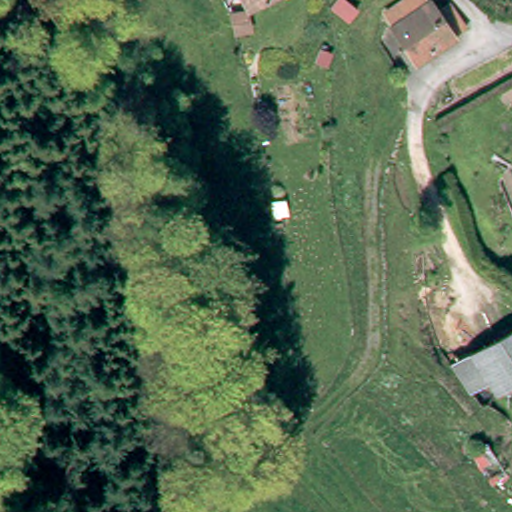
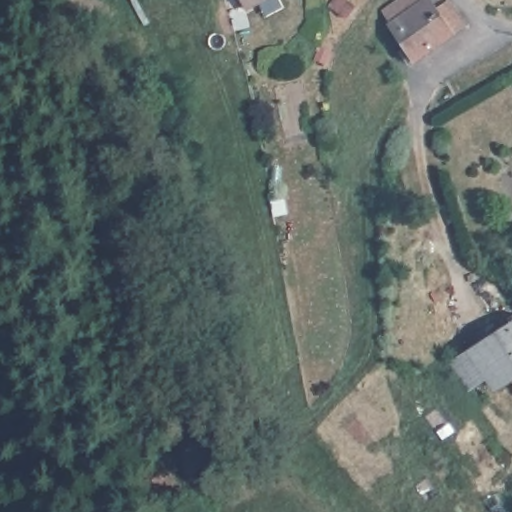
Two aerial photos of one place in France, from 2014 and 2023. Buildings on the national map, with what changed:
unchanged [(248,9),(247,10),(241,0),(267,0),(248,9)]
unchanged [(445,0),(452,0),(453,2),(467,21),(415,57),(414,55),(407,60),(400,49),(407,44),(392,22),(393,21),(383,6),(392,0),(434,0),(438,5),(445,0)]
unchanged [(471,372),(457,350),(512,314),(512,364),(496,374),(487,361),(471,372)]

